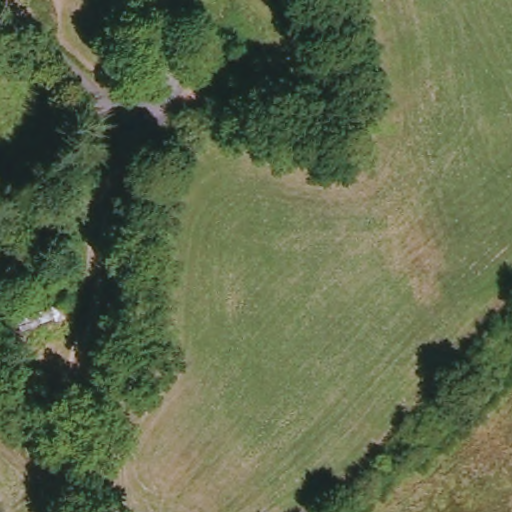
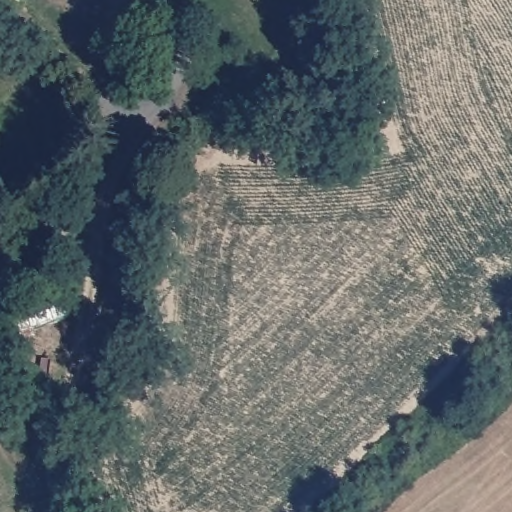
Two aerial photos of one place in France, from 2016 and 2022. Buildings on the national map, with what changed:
unchanged [(66,310),(62,329),(48,326),(22,333),(17,320),(45,312),(50,313),(52,307),(66,310)]

